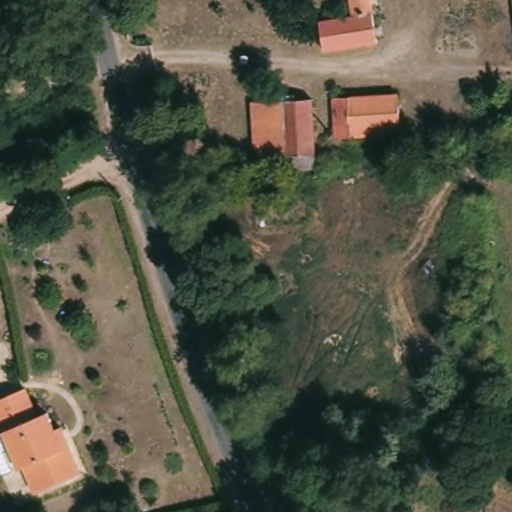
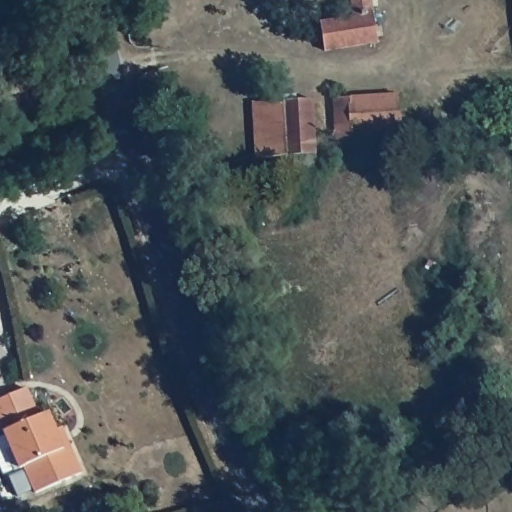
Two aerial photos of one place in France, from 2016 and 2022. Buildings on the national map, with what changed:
unchanged [(354,21),(352,0),(373,0),(380,48),(324,55),(320,25),(354,21)]
unchanged [(333,105),(400,98),(403,136),(336,141),(333,105)]
unchanged [(318,175),(290,180),(288,161),(256,166),(250,109),(310,100),(318,175)]
unchanged [(76,482),(27,497),(19,471),(12,472),(0,435),(0,400),(25,392),(35,420),(47,417),(54,435),(61,434),(67,455),(76,482)]

